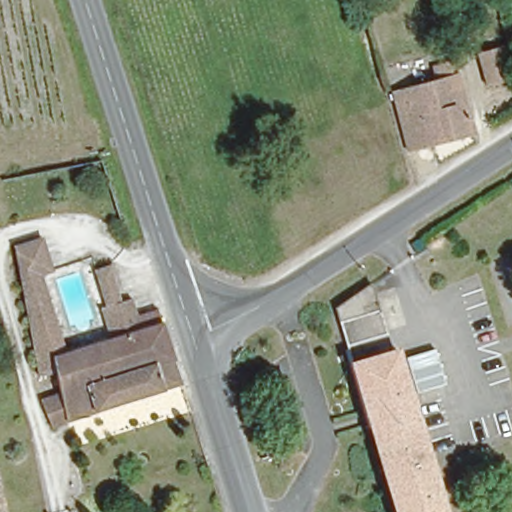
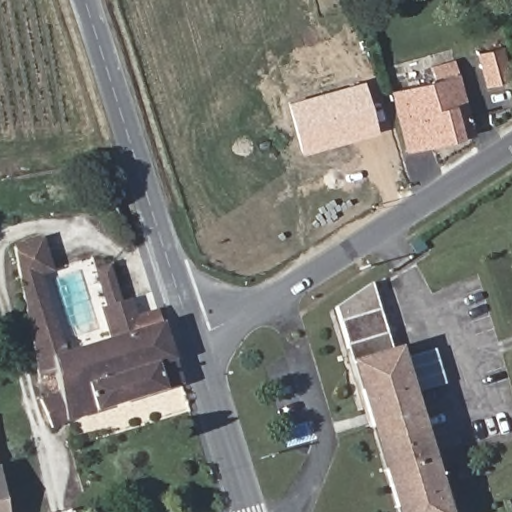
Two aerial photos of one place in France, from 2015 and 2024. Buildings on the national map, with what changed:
unchanged [(511,79),(481,86),(473,52),(503,46),(511,79)]
unchanged [(396,92),(434,80),(430,62),(454,55),(475,135),(411,152),(396,92)]
new [(301,155),(286,103),(363,82),(378,134),(301,155)]
unchanged [(49,239),(55,272),(41,275),(55,354),(39,358),(38,354),(20,248),(19,245),(49,239)]
unchanged [(45,397),(61,394),(56,371),(41,374),(39,358),(55,354),(106,341),(96,310),(104,308),(92,270),(108,264),(120,302),(131,298),(138,317),(160,309),(184,386),(67,420),(51,424),(45,397)]
unchanged [(370,284),(384,337),(345,347),(333,311),(370,284)]
unchanged [(345,347),(382,337),(384,337),(394,377),(402,375),(441,512),(390,512),(349,363),(345,347)]
unchanged [(5,512),(0,512),(0,483),(5,512)]

